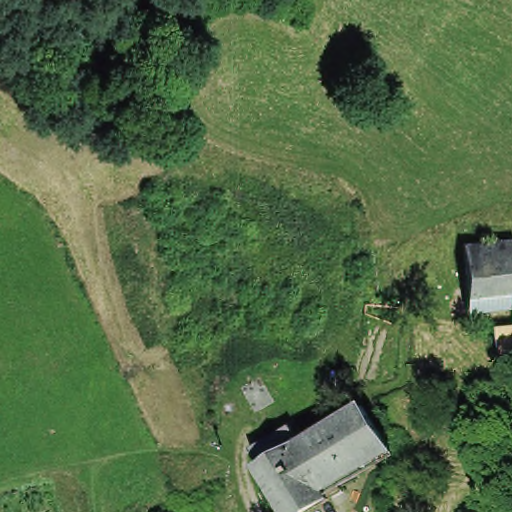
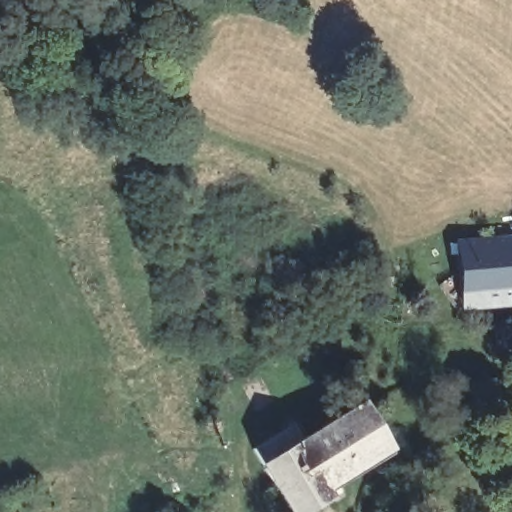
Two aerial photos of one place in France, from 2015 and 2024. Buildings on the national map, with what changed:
unchanged [(512,245),(512,306),(470,310),(469,298),(466,272),(464,250),(512,245)]
unchanged [(396,457),(330,498),(335,507),(326,512),(293,512),(270,474),(312,449),(335,435),(332,430),(345,423),(347,428),(370,414),(396,457)]
unchanged [(300,431),(312,449),(270,474),(260,456),(300,431)]

